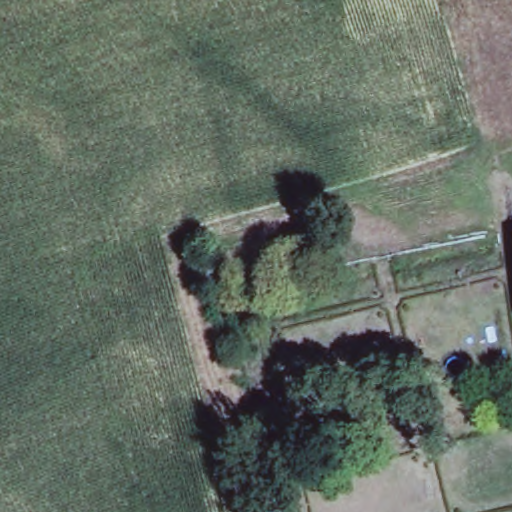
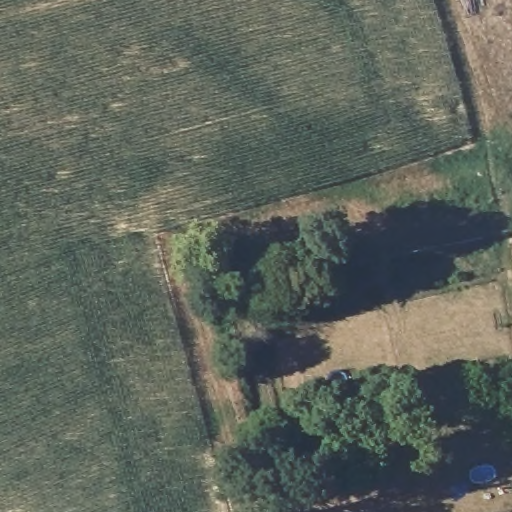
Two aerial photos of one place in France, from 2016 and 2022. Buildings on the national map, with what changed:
[]

